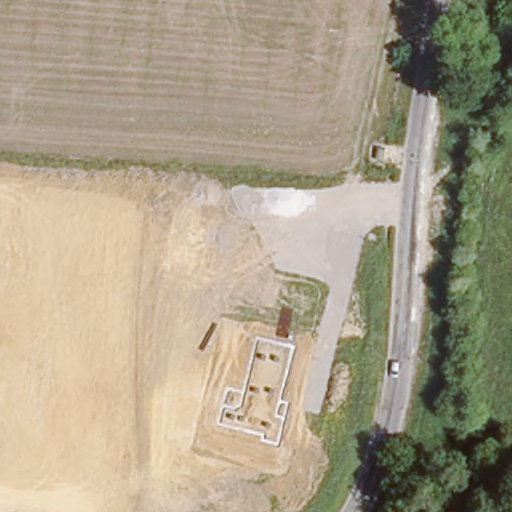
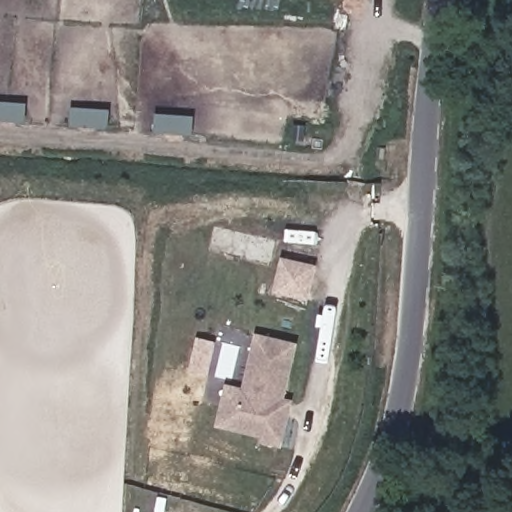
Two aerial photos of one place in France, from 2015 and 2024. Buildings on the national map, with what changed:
new [(308,301),(273,293),(281,257),(316,266),(308,301)]
new [(285,398),(293,400),(282,446),(258,441),(260,436),(215,427),(224,383),(242,388),(255,333),(298,343),(285,398)]

